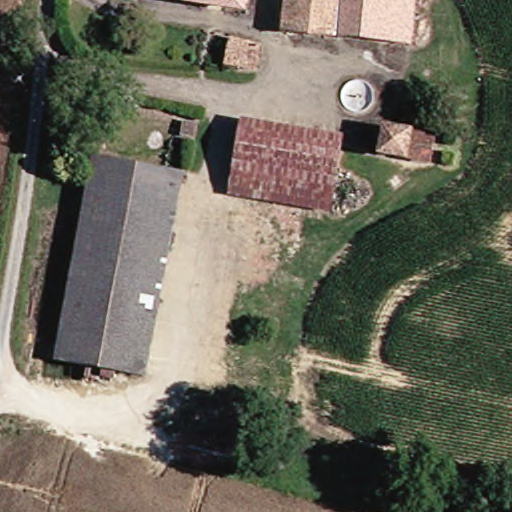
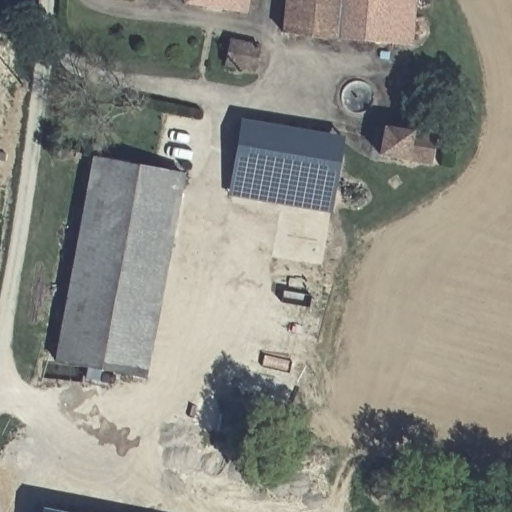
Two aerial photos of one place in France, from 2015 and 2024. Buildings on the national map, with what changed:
unchanged [(240,19),(181,8),(182,0),(243,0),(240,19)]
unchanged [(280,0),(387,0),(386,7),(339,2),(337,33),(277,26),(280,0)]
unchanged [(386,15),(407,18),(403,41),(337,33),(339,2),(386,7),(386,15)]
unchanged [(199,37),(257,50),(252,75),(194,62),(199,37)]
unchanged [(231,169),(241,122),(339,139),(329,189),(231,169)]
unchanged [(428,138),(422,167),(376,157),(383,129),(428,138)]
unchanged [(180,173),(137,377),(49,357),(91,156),(180,173)]
unchanged [(329,189),(327,214),(227,196),(231,169),(329,189)]
new [(64,512),(40,512),(41,507),(64,512)]

